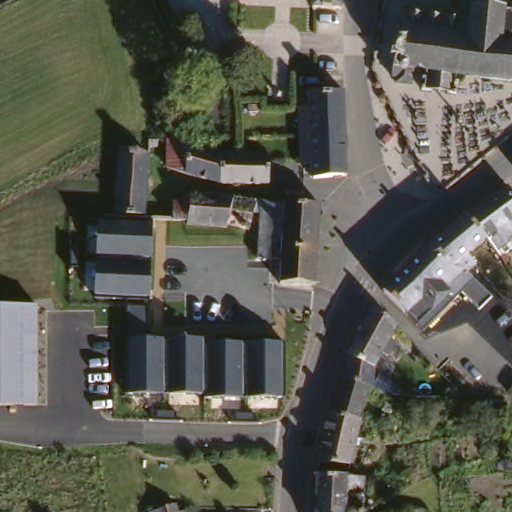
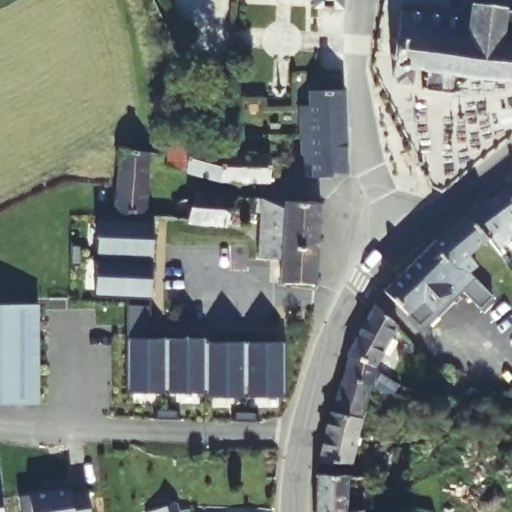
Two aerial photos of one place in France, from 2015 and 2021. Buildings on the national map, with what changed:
unchanged [(315,5),(315,0),(343,0),(343,4),(315,5)]
unchanged [(453,91),(421,87),(422,69),(413,68),(411,83),(393,81),(393,74),(387,73),(393,10),(465,13),(466,0),(499,0),(512,1),(512,79),(454,75),(453,91)]
unchanged [(344,135),(346,174),(316,175),(313,147),(309,87),(338,87),(341,87),(344,135)]
unchanged [(213,176),(193,172),(171,166),(166,163),(168,149),(179,151),(180,141),(196,144),(217,149),(213,176)]
unchanged [(264,180),(234,179),(213,176),(217,149),(229,150),(266,153),(264,180)]
unchanged [(146,210),(115,206),(117,186),(122,152),(151,155),(146,210)]
unchanged [(506,230),(494,240),(499,247),(496,251),(481,230),(464,210),(488,194),(504,184),(512,196),(512,220),(504,228),(506,230)]
unchanged [(318,248),(316,284),(283,282),(284,260),(257,257),(256,226),(246,222),(198,220),(196,218),(183,216),(181,207),(180,201),(181,199),(185,198),(196,195),(198,192),(206,192),(249,194),(286,199),(313,202),(321,203),(318,248)]
unchanged [(464,247),(474,257),(468,264),(492,287),(481,298),(476,288),(468,275),(431,236),(442,226),(452,219),(464,210),(481,230),(464,247)]
unchanged [(150,296),(96,294),(98,224),(150,226),(150,296)]
unchanged [(408,304),(384,282),(404,262),(426,240),(431,236),(468,275),(476,288),(481,298),(479,301),(462,284),(454,292),(439,306),(424,321),(408,304)]
unchanged [(320,453),(322,409),(325,401),(335,381),(338,376),(344,358),(349,343),(357,328),(364,313),(369,303),(391,326),(385,336),(391,339),(382,354),(377,352),(372,363),(367,388),(358,416),(356,423),(353,455),(320,453)]
unchanged [(38,405),(0,404),(0,306),(39,306),(38,405)]
unchanged [(282,397),(128,391),(127,308),(151,309),(151,337),(284,343),(282,397)]
unchanged [(389,393),(381,391),(372,389),(376,377),(392,381),(389,393)]
unchanged [(313,512),(314,474),(364,477),(363,512),(313,512)]
new [(20,512),(18,497),(46,493),(46,490),(48,487),(69,485),(71,493),(88,492),(90,512),(20,512)]
unchanged [(163,504),(168,503),(168,499),(181,497),(183,501),(188,501),(189,508),(189,512),(152,512),(151,505),(163,504)]

